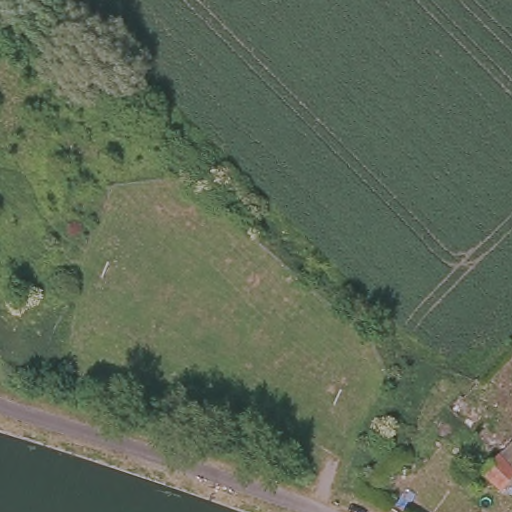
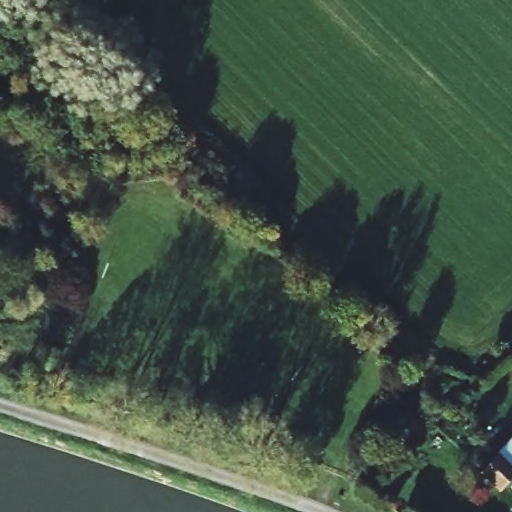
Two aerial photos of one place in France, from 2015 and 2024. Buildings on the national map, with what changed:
unchanged [(496,486),(478,468),(496,449),(509,436),(512,440),(512,471),(496,486)]

